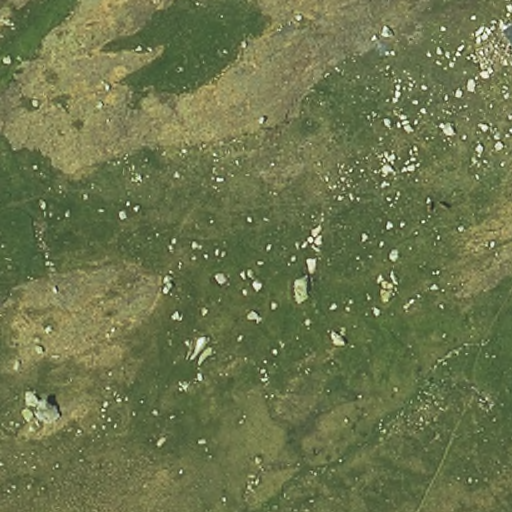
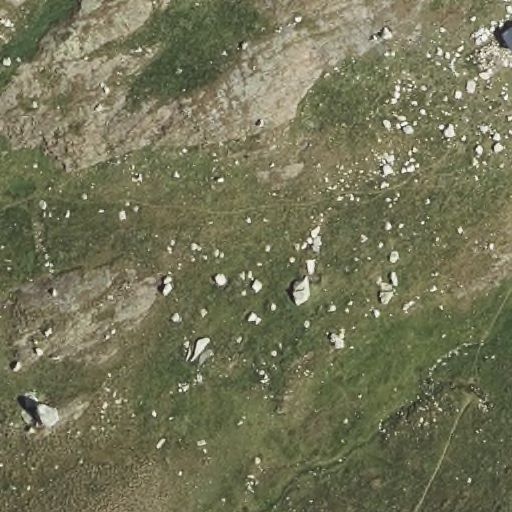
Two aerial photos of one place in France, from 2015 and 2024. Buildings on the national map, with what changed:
unchanged [(512,22),(512,49),(498,30),(512,22)]

